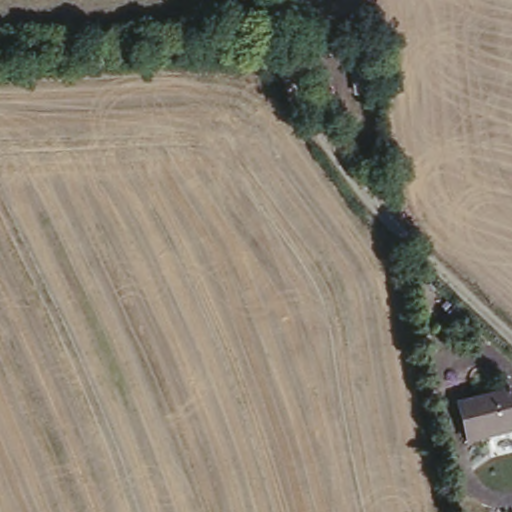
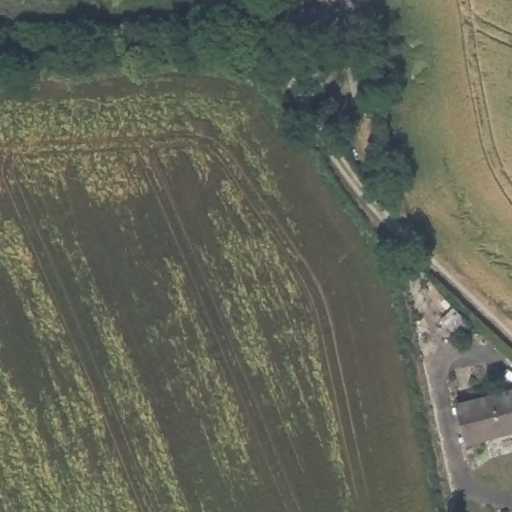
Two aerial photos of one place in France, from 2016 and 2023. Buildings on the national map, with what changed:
unchanged [(510,379),(512,385),(512,423),(467,438),(453,398),(510,379)]

